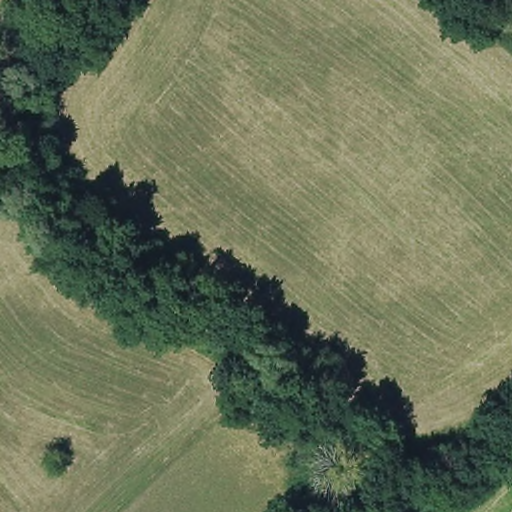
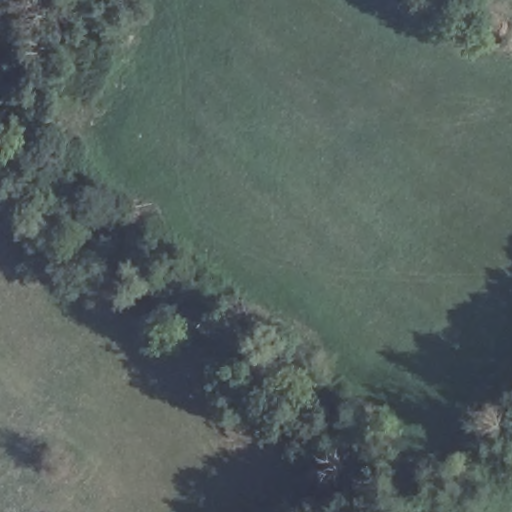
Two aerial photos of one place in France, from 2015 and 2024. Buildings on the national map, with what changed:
[]

